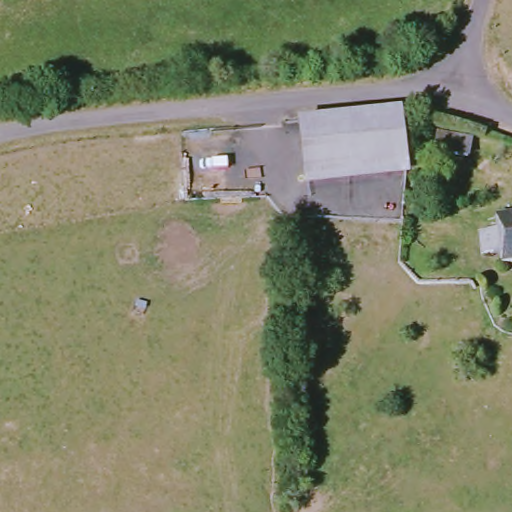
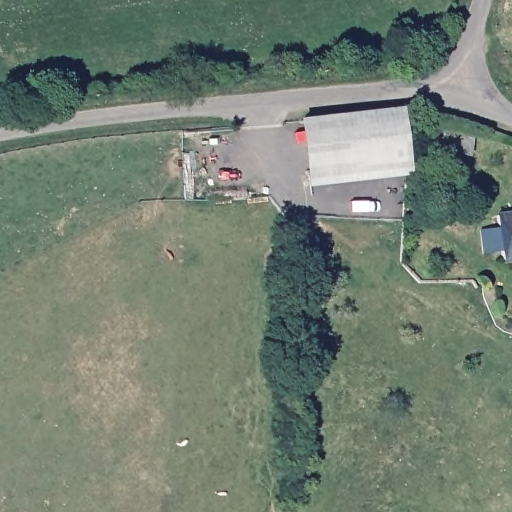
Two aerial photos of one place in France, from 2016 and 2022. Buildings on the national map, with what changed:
unchanged [(306,129),(406,117),(412,170),(309,182),(303,129),(306,129)]
unchanged [(472,136),(469,151),(439,145),(442,130),(472,136)]
unchanged [(506,250),(483,252),(481,226),(504,224),(502,210),(512,209),(512,261),(507,262),(506,250)]

